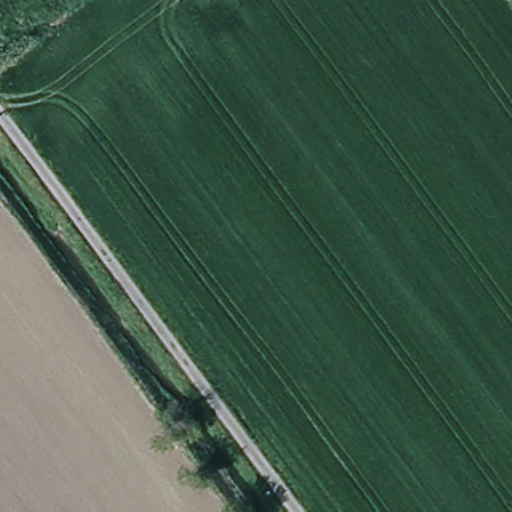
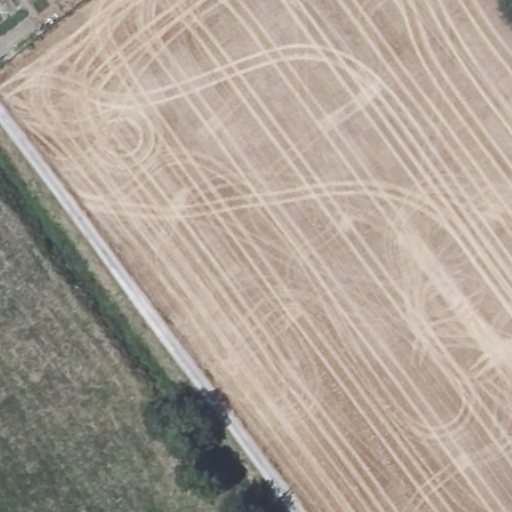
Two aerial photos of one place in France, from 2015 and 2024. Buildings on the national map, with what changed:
[]

